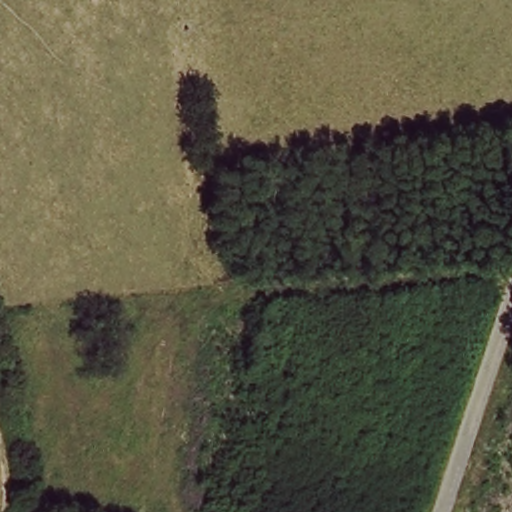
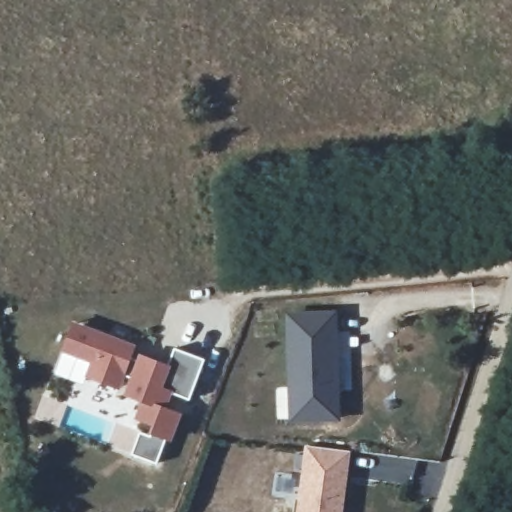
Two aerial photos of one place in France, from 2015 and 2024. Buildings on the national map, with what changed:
new [(338,311),(340,422),(290,424),(286,313),(338,311)]
new [(140,433),(148,436),(151,426),(136,420),(142,404),(123,397),(130,381),(125,378),(121,392),(85,378),(90,364),(62,353),(73,323),(136,347),(132,359),(137,360),(138,355),(170,366),(175,352),(203,363),(190,400),(173,393),(167,409),(182,413),(171,443),(166,441),(157,465),(132,455),(140,433)]
new [(343,512),(297,512),(305,447),(349,452),(343,512)]

